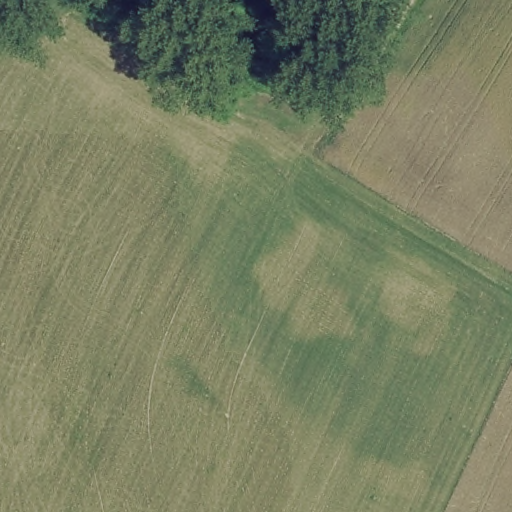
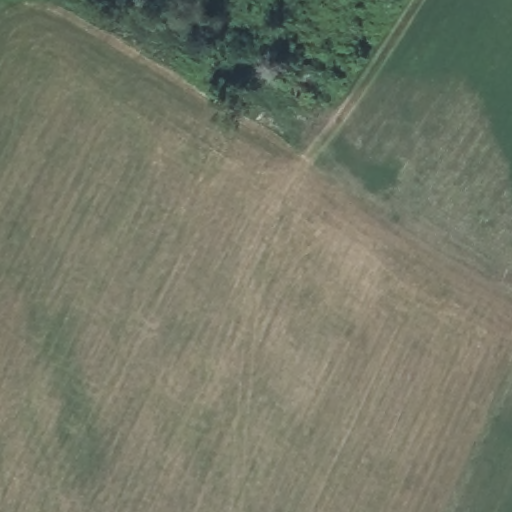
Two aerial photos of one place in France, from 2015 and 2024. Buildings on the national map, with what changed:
unchanged [(283,63),(314,63),(316,84),(284,84),(283,63)]

